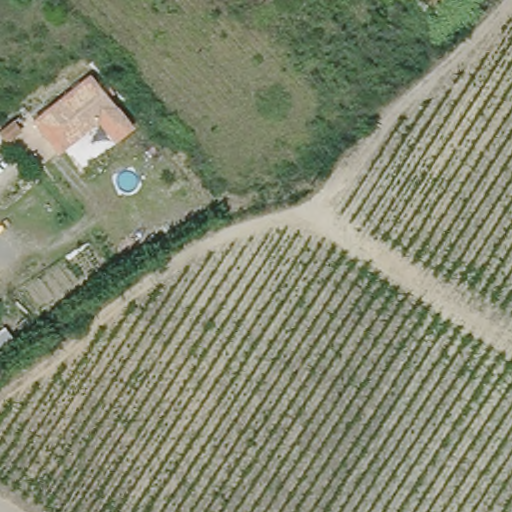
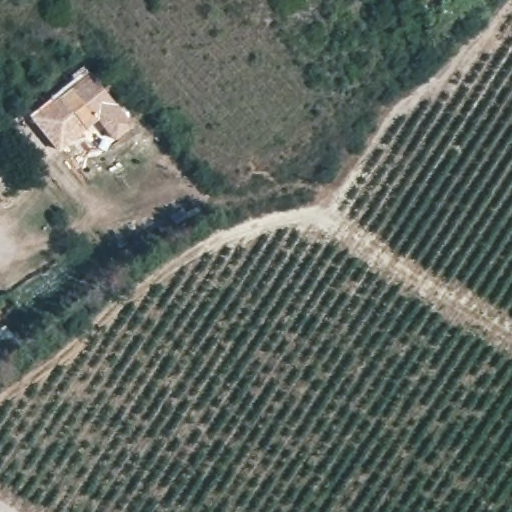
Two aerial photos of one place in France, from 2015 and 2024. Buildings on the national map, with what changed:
unchanged [(63,147),(54,134),(47,138),(34,119),(91,74),(114,104),(63,147)]

